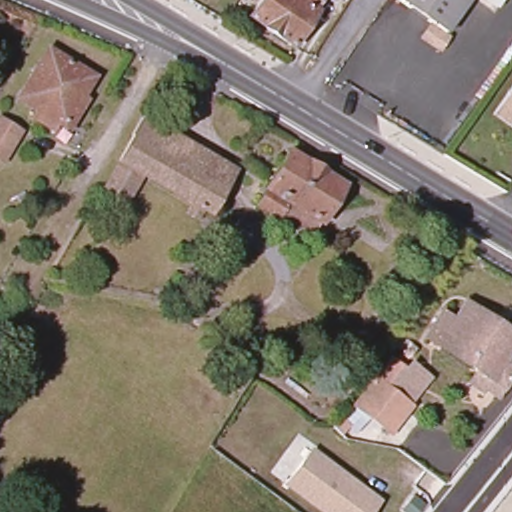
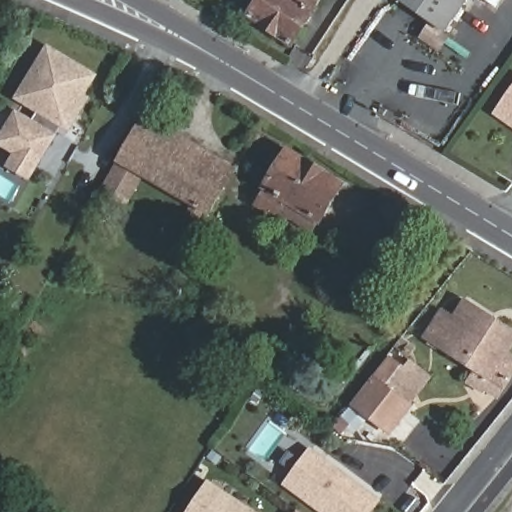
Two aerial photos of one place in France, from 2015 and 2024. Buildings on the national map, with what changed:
unchanged [(315,16),(291,49),(248,21),(262,0),(321,0),(312,13),(315,16)]
unchanged [(400,0),(470,0),(447,32),(400,0)]
unchanged [(483,0),(502,0),(496,10),(483,0)]
unchanged [(70,129),(63,124),(56,121),(37,109),(18,98),(47,50),(92,77),(82,95),(87,99),(70,129)]
unchanged [(512,80),(512,125),(491,110),(512,80)]
new [(9,165),(16,153),(0,143),(0,139),(1,137),(16,113),(33,124),(42,122),(47,115),(61,123),(36,164),(27,177),(9,165)]
unchanged [(100,189),(117,160),(142,116),(234,170),(209,212),(201,208),(199,213),(196,216),(192,215),(188,214),(186,212),(185,210),(185,207),(188,201),(136,171),(119,200),(100,189)]
demolished [(19,131),(2,161),(0,159),(0,119),(19,131)]
unchanged [(285,206),(281,212),(262,200),(272,186),(267,183),(291,145),(347,180),(324,218),(319,227),(285,206)]
unchanged [(483,371),(471,362),(431,337),(447,313),(457,319),(467,304),(512,332),(512,353),(511,355),(512,356),(512,384),(510,388),(501,397),(476,381),(483,371)]
unchanged [(406,364),(410,359),(434,376),(390,435),(367,420),(352,438),(335,424),(392,357),(406,364)]
unchanged [(382,500),(373,512),(317,512),(283,487),(310,447),(382,500)]
new [(207,480),(255,512),(186,512),(207,480)]
new [(298,512),(295,512),(296,510),(298,512)]

